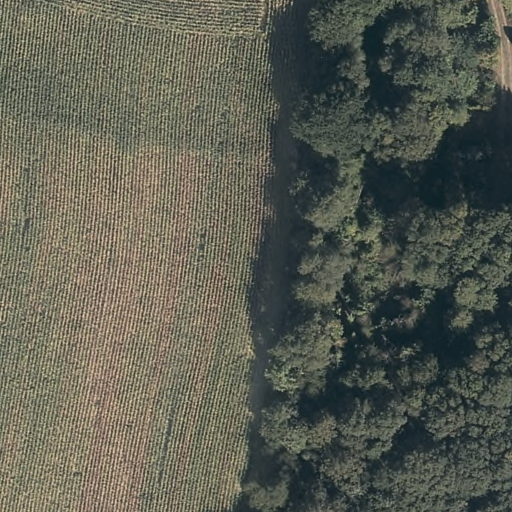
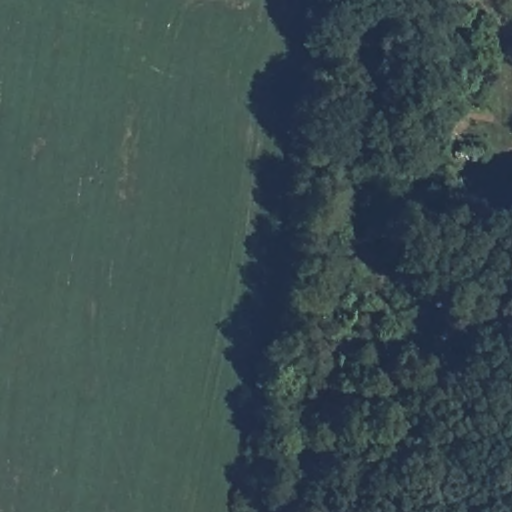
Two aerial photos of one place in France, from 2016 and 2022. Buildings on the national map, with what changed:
unchanged [(508,291),(475,288),(477,270),(510,271),(508,291)]

